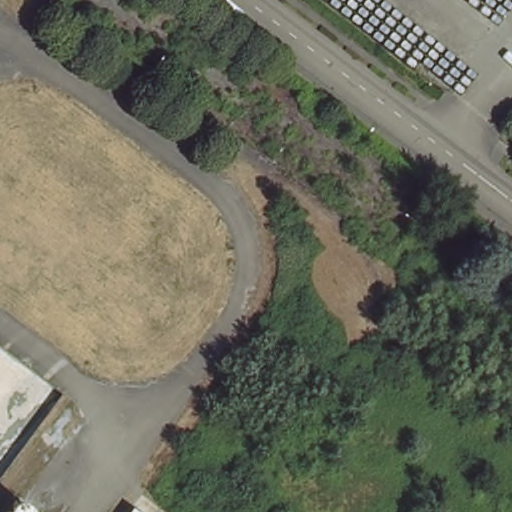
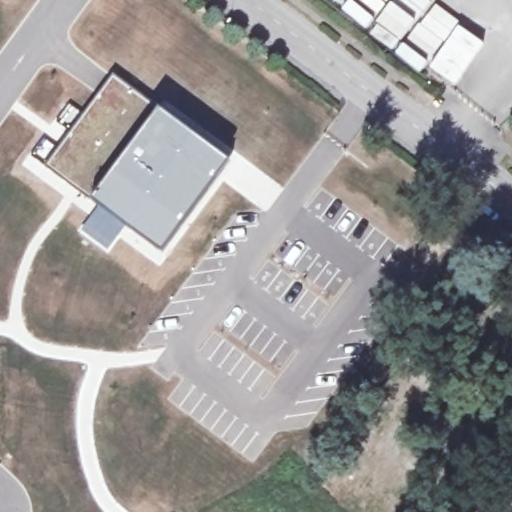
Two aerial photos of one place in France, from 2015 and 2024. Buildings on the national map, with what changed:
new [(225,161),(160,250),(42,166),(108,76),(225,161)]
demolished [(137,511),(139,512),(135,512),(137,511)]

